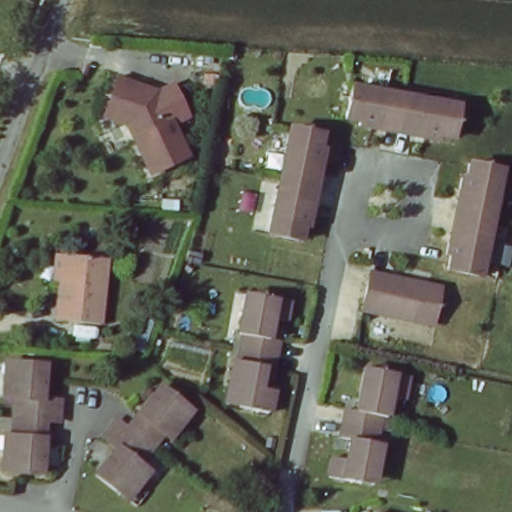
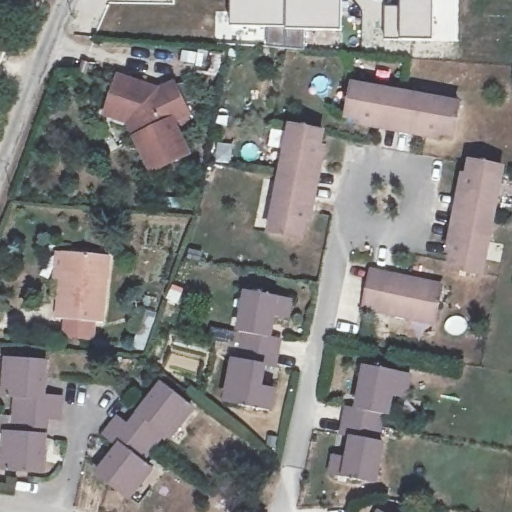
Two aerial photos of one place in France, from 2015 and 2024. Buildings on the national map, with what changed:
new [(263,29),(231,29),(231,0),(343,0),(343,33),(306,31),(305,51),(263,48),(263,29)]
new [(434,41),(383,40),(383,5),(400,5),(399,0),(459,0),(459,41),(434,41)]
new [(181,49),(223,54),(219,71),(180,63),(181,49)]
unchanged [(143,94),(142,98),(155,101),(174,93),(190,129),(177,135),(175,129),(172,131),(186,163),(150,179),(128,129),(106,121),(113,101),(118,85),(143,94)]
unchanged [(392,93),(392,94),(419,99),(420,98),(457,105),(451,135),(437,133),(437,137),(425,135),(426,131),(414,129),(414,128),(387,123),(386,123),(374,121),(374,126),(363,124),(363,120),(349,116),(355,86),(392,93)]
unchanged [(277,230),(283,193),(284,193),(289,165),(288,165),(295,128),(325,133),(323,147),(327,148),(325,159),(321,159),(319,170),(317,170),(312,197),(314,198),(312,210),(316,211),(314,222),(309,221),(307,235),(277,230)]
unchanged [(455,266),(457,252),(453,251),(455,240),(459,241),(462,229),(467,202),(469,190),(465,189),(467,178),(470,178),(473,165),(504,170),(497,207),(496,207),(490,234),(492,235),(485,272),(455,266)]
unchanged [(107,259),(102,324),(56,321),(60,256),(107,259)]
unchanged [(374,279),(390,281),(389,282),(440,291),(435,325),(383,316),(384,315),(369,312),(374,279)]
unchanged [(287,297),(284,316),(269,313),(266,335),(275,337),(269,366),(260,364),(256,386),(270,389),(267,408),(223,400),(231,359),(235,360),(241,331),(237,329),(244,289),(287,297)]
unchanged [(43,475),(4,473),(5,453),(15,453),(16,424),(16,400),(4,400),(5,378),(14,378),(14,363),(45,364),(45,402),(62,402),(61,424),(45,423),(43,475)]
unchanged [(338,458),(353,460),(357,439),(347,437),(353,408),(362,409),(371,366),(413,374),(409,397),(395,395),(392,414),(387,414),(381,443),(385,444),(378,485),(334,477),(338,458)]
unchanged [(162,385),(193,411),(179,426),(173,421),(150,449),(132,469),(139,476),(128,490),(121,484),(113,494),(91,473),(114,446),(102,436),(116,420),(125,427),(162,385)]

